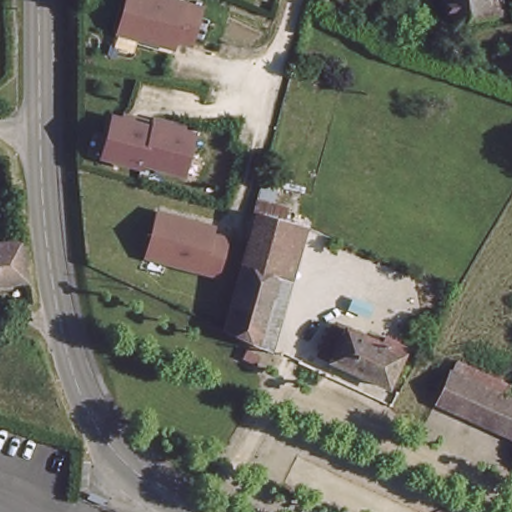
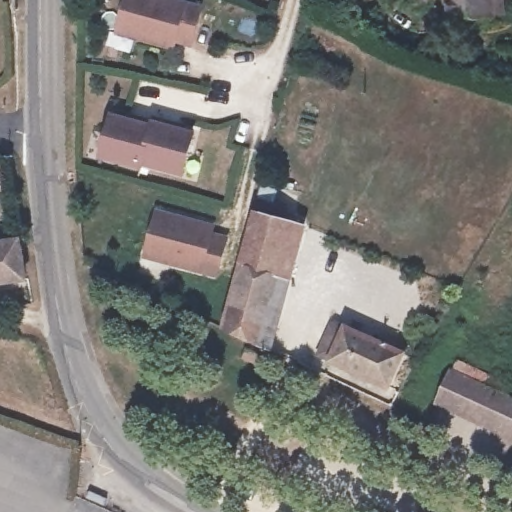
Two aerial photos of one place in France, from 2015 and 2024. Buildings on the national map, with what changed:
unchanged [(175,0),(206,9),(196,45),(181,40),(179,48),(123,31),(132,0),(175,0)]
unchanged [(500,0),(503,13),(489,15),(447,21),(443,0),(500,0)]
unchanged [(112,116),(133,123),(134,119),(153,124),(154,120),(174,125),(173,129),(194,135),(183,174),(143,163),(142,167),(102,156),(112,116)]
unchanged [(161,207),(216,222),(214,229),(230,233),(220,269),(149,250),(161,207)]
unchanged [(228,327),(261,211),(300,222),(265,345),(228,327)]
unchanged [(0,279),(0,239),(15,238),(20,238),(25,277),(0,279)]
unchanged [(328,356),(343,323),(403,351),(388,383),(328,356)]
unchanged [(244,356),(249,347),(262,354),(258,363),(244,356)]
unchanged [(439,401),(452,371),(506,397),(512,399),(512,434),(439,401)]

